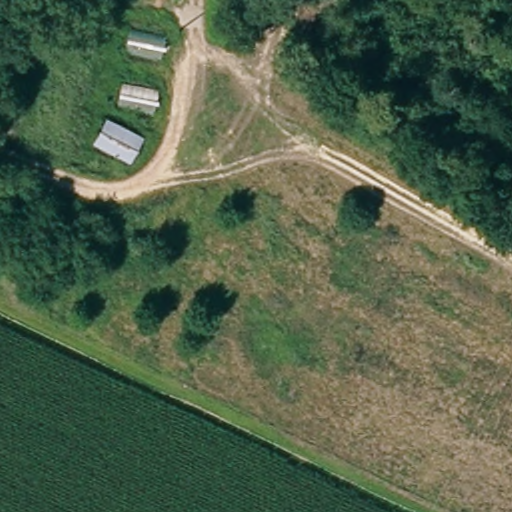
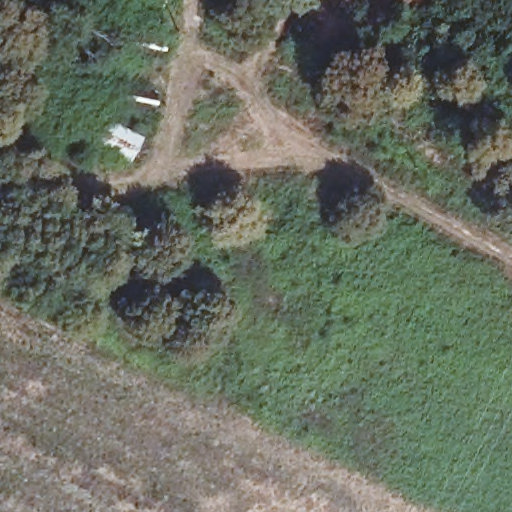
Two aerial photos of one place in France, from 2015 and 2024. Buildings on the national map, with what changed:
unchanged [(127,52),(131,28),(166,35),(162,61),(127,52)]
unchanged [(157,112),(119,106),(122,82),(161,88),(157,112)]
unchanged [(132,164),(95,145),(108,117),(146,139),(132,164)]

